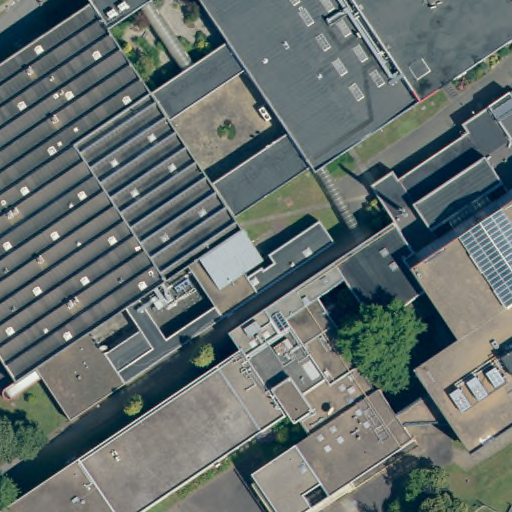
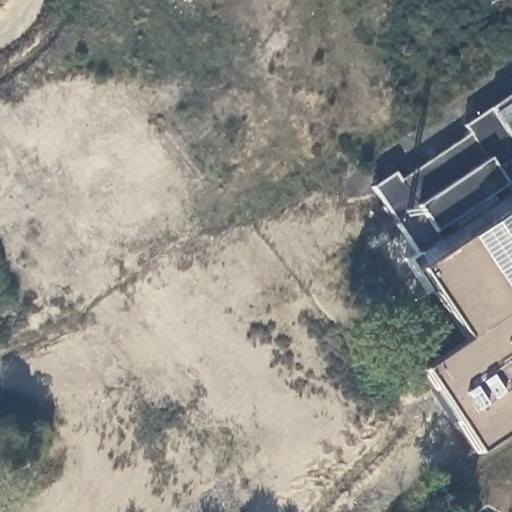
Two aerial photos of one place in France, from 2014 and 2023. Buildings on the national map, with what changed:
demolished [(319,172),(315,167),(239,219),(267,262),(248,274),(250,278),(264,268),(265,271),(276,264),(271,257),(322,221),(337,242),(225,321),(75,421),(46,379),(15,398),(10,390),(21,382),(0,351),(0,67),(94,4),(91,0),(159,0),(156,2),(199,65),(231,42),(202,0),(512,0),(512,42),(319,172)]
unchanged [(377,187),(399,172),(404,179),(473,133),(469,126),(512,95),(512,145),(474,171),(459,182),(400,222),(377,187)]
new [(229,336),(400,222),(459,182),(474,171),(487,162),(512,145),(512,206),(507,210),(512,217),(512,282),(502,288),(467,237),(419,270),(434,292),(466,338),(467,340),(424,370),(439,392),(404,416),(408,422),(402,426),(412,441),(304,512),(278,512),(252,473),(305,437),(290,415),(145,512),(3,512),(239,352),(229,336)]
demolished [(313,512),(285,512),(259,474),(317,436),(306,420),(303,423),(293,408),(289,411),(293,415),(149,512),(8,512),(248,351),(237,334),(249,326),(270,357),(294,342),(272,310),(313,281),(400,222),(459,182),(474,171),(512,145),(512,206),(507,210),(467,237),(419,270),(434,292),(383,326),(352,282),(325,300),(369,364),(366,367),(383,392),(386,391),(404,416),(411,427),(421,441),(313,512)]
unchanged [(507,210),(512,206),(512,217),(507,210)]
unchanged [(480,452),(458,422),(439,424),(411,427),(404,416),(439,392),(424,370),(467,340),(466,338),(434,292),(419,270),(467,237),(502,288),(512,282),(512,430),(480,452)]
demolished [(294,342),(270,357),(249,326),(272,310),(294,342)]

